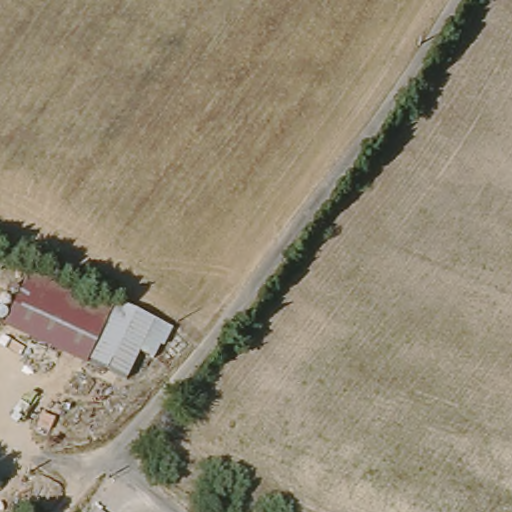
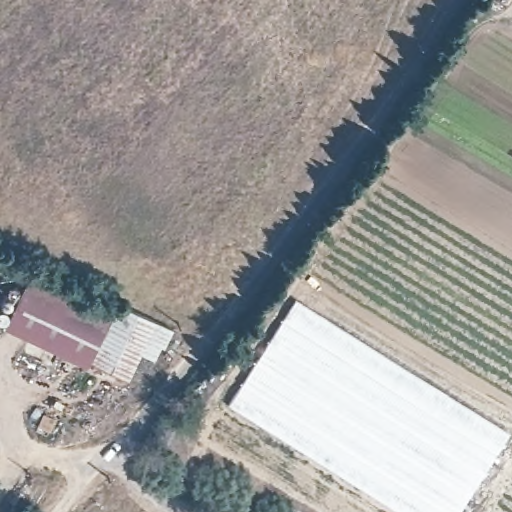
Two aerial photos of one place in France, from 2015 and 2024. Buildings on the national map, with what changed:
unchanged [(89,361),(0,328),(0,313),(23,261),(116,300),(165,324),(150,356),(135,350),(131,359),(124,376),(89,361)]
new [(296,297),(511,433),(461,512),(398,512),(228,406),(296,297)]

